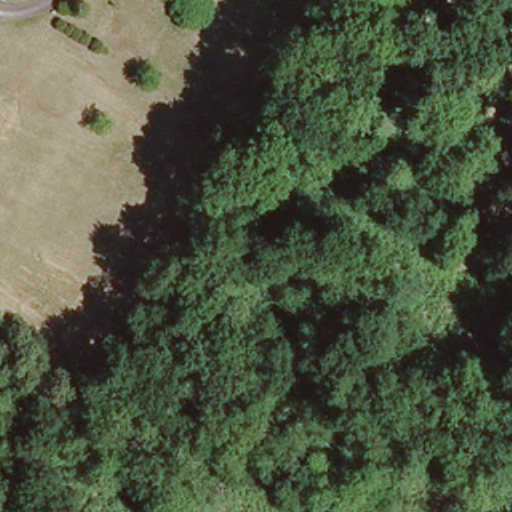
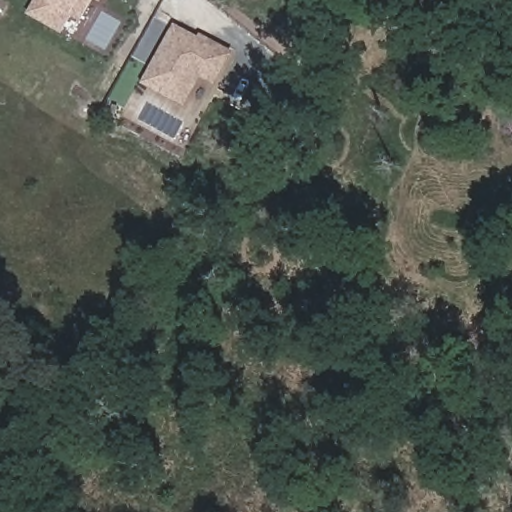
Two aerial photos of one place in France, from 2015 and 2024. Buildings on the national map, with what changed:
new [(77,20),(69,15),(59,32),(27,14),(35,0),(89,0),(77,20)]
new [(97,1),(95,0),(98,0),(97,1)]
new [(235,55),(232,57),(215,90),(198,81),(185,107),(139,85),(171,24),(235,55)]

